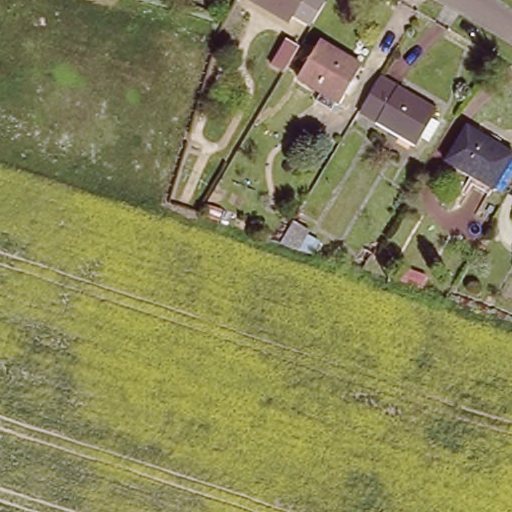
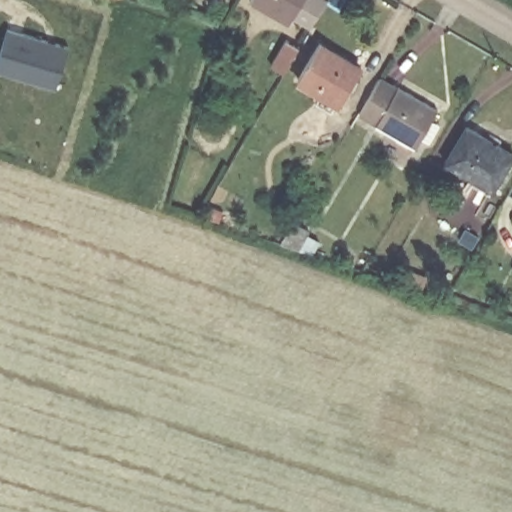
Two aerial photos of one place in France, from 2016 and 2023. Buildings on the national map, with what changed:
unchanged [(296,11),(292,18),(262,0),(322,0),(327,3),(315,22),(296,11)]
new [(0,58),(8,28),(67,45),(57,87),(0,70),(0,58)]
unchanged [(302,75),(320,43),(363,67),(344,98),(302,75)]
unchanged [(286,51),(302,58),(288,80),(275,72),(286,51)]
unchanged [(360,111),(378,81),(396,91),(400,84),(442,107),(434,122),(440,125),(432,138),(425,134),(420,145),(360,111)]
unchanged [(452,160),(469,128),(512,150),(512,158),(498,184),(452,160)]

